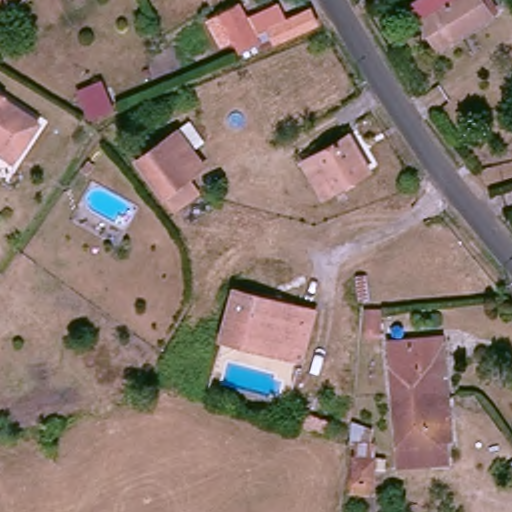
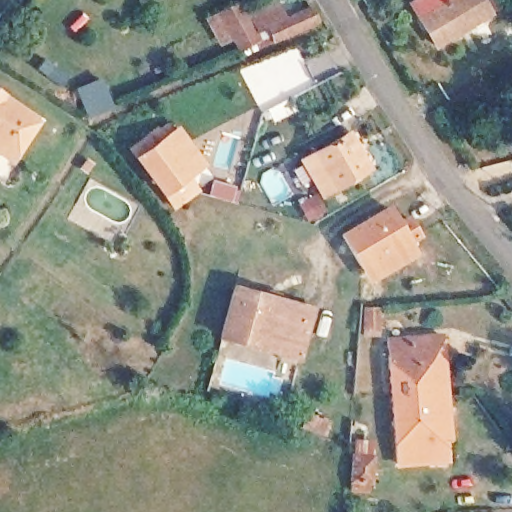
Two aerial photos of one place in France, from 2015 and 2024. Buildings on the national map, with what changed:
unchanged [(414,5),(422,0),(491,0),(496,10),(481,20),(469,27),(449,39),(439,46),(414,5)]
unchanged [(246,14),(253,11),(276,1),(283,17),(302,9),(309,22),(266,41),(239,51),(233,39),(217,45),(204,16),(239,1),(246,14)]
unchanged [(6,166),(0,162),(0,95),(37,122),(6,166)]
unchanged [(207,140),(200,147),(212,166),(198,181),(205,192),(174,209),(128,149),(152,130),(164,140),(190,115),(207,140)]
unchanged [(313,177),(324,170),(312,150),(342,132),(362,167),(315,195),(307,181),(313,177)]
new [(399,221),(410,214),(424,237),(413,244),(419,254),(369,283),(339,232),(389,202),(399,221)]
unchanged [(242,287),(321,307),(311,347),(276,338),(272,355),(228,343),(242,287)]
unchanged [(418,397),(418,393),(396,393),(395,337),(452,336),(452,358),(437,359),(438,397),(418,397)]
unchanged [(438,414),(446,414),(447,460),(397,461),(396,393),(418,393),(418,397),(438,397),(438,414)]

